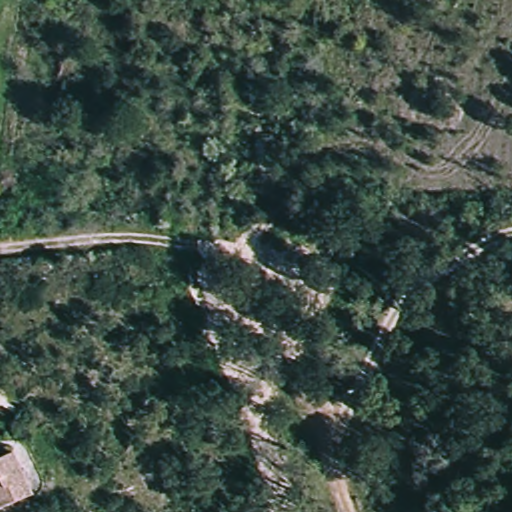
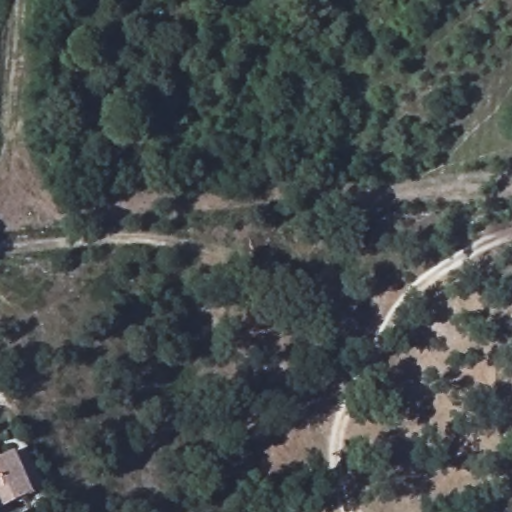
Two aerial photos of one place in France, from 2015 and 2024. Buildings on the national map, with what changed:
unchanged [(28,491),(0,502),(0,456),(11,451),(28,491)]

